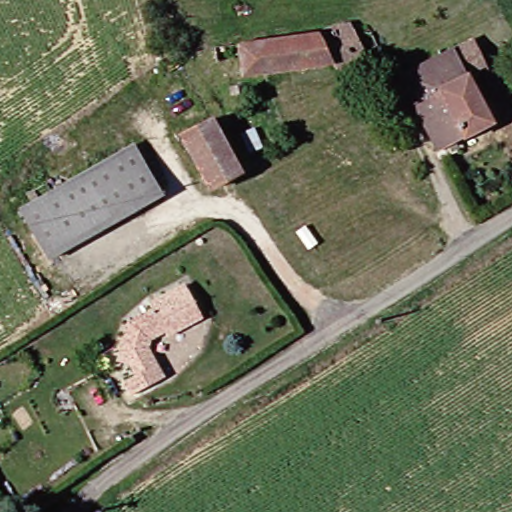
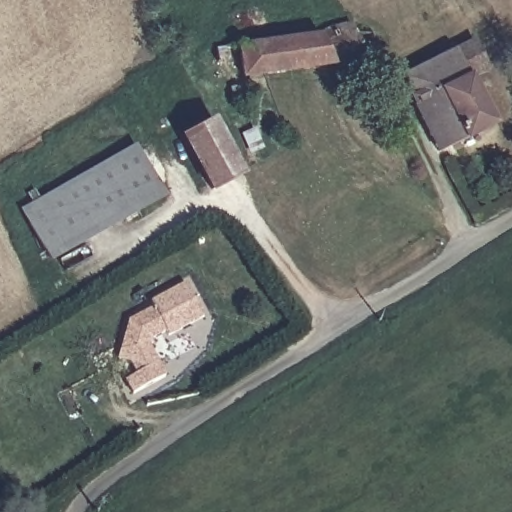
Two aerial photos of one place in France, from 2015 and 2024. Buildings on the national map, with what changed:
unchanged [(338,66),(336,62),(250,72),(247,56),(222,59),(221,45),(327,31),(338,26),(352,18),(358,27),(371,50),(338,66)]
unchanged [(441,151),(403,80),(456,49),(474,38),(489,65),(470,76),(492,121),(441,151)]
unchanged [(243,169),(214,187),(184,133),(213,116),(243,169)]
unchanged [(169,191),(64,255),(34,202),(142,142),(169,191)]
unchanged [(206,315),(171,334),(168,327),(151,338),(169,373),(134,393),(127,381),(139,372),(131,357),(122,354),(131,321),(157,305),(157,298),(187,281),(206,315)]

